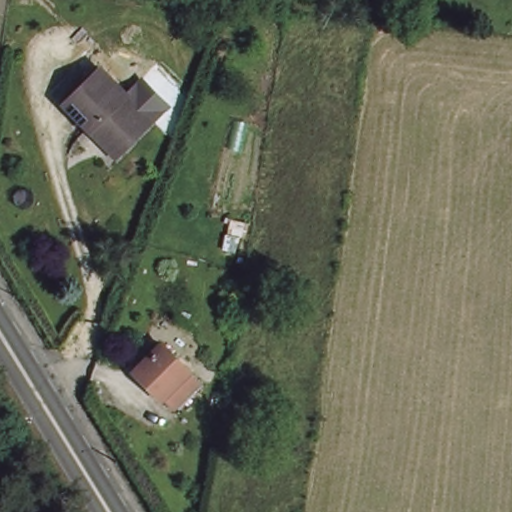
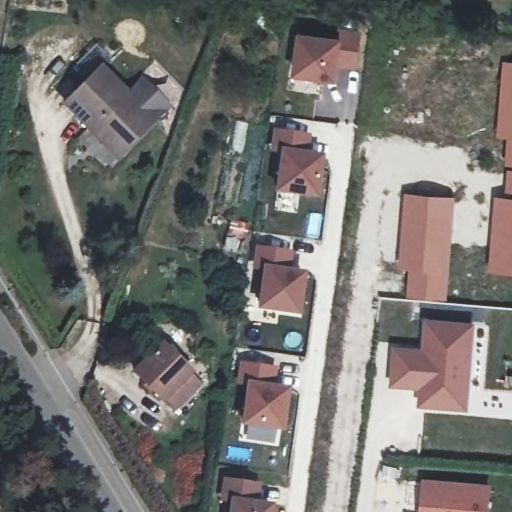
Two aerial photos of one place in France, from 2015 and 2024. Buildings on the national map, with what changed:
new [(338,38),(338,29),(360,32),(355,70),(337,68),(335,83),(290,76),(296,33),(338,38)]
new [(494,199),(501,198),(505,138),(495,136),(502,63),(512,63),(512,272),(488,270),(494,199)]
unchanged [(153,125),(122,155),(97,129),(92,135),(65,109),(101,73),(127,99),(142,84),(168,110),(153,125)]
new [(277,154),(269,153),(272,129),(311,134),(311,152),(323,154),(318,199),(272,194),(277,154)]
new [(406,297),(408,270),(397,268),(403,193),(453,197),(445,300),(406,297)]
new [(258,309),(263,269),(253,268),(256,249),(288,253),(286,272),(300,274),(295,314),(258,309)]
new [(416,408),(417,390),(388,388),(392,347),(421,349),(424,319),(474,323),(467,412),(416,408)]
unchanged [(163,399),(135,372),(162,344),(190,371),(201,382),(173,409),(163,399)]
new [(280,362),(279,379),(290,380),(285,424),(242,421),(243,406),(232,404),(235,359),(280,362)]
new [(488,512),(419,512),(422,477),(491,484),(488,512)]
unchanged [(225,479),(257,484),(254,503),(270,506),(269,512),(230,512),(232,500),(222,499),(225,479)]

